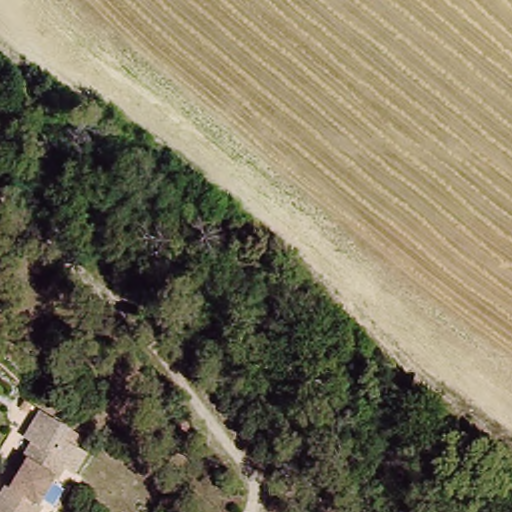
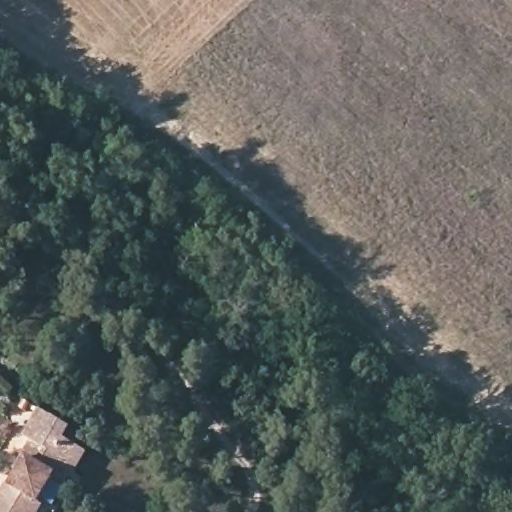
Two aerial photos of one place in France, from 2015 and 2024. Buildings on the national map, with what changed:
unchanged [(10,491),(18,478),(13,475),(31,446),(23,442),(40,415),(47,419),(70,433),(63,444),(77,451),(57,484),(54,483),(37,510),(41,512),(0,512),(0,498),(5,488),(10,491)]

